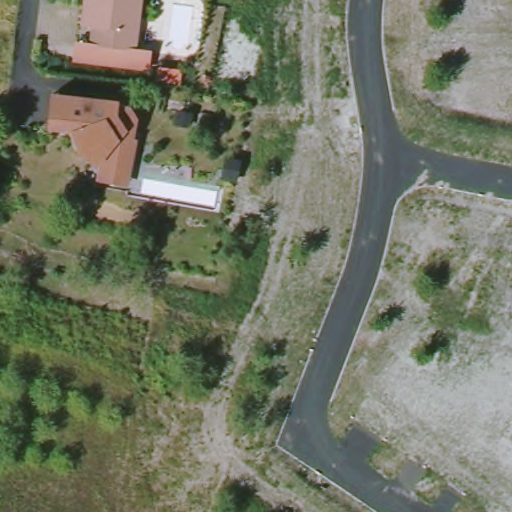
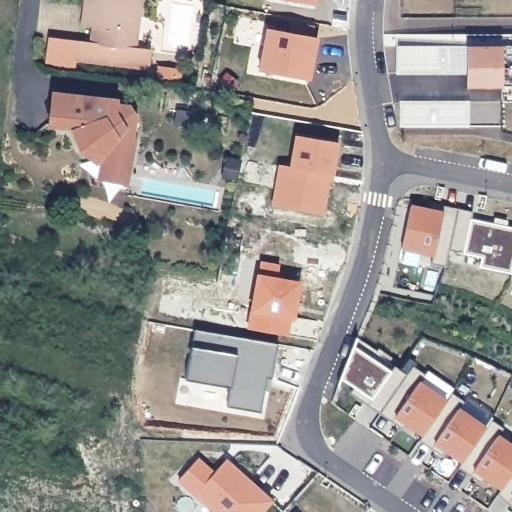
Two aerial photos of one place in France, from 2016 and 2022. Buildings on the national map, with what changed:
unchanged [(138,51),(95,45),(97,27),(87,26),(90,3),(90,0),(146,0),(139,50),(138,51)]
new [(315,6),(281,0),(316,0),(315,6)]
new [(258,71),(265,30),(318,39),(311,80),(258,71)]
new [(502,80),(502,86),(467,86),(465,42),(512,43),(512,80),(502,80)]
unchanged [(138,51),(153,54),(151,71),(135,69),(78,60),(77,60),(80,43),(81,44),(95,45),(138,51)]
unchanged [(105,175),(94,172),(96,161),(98,150),(77,140),(77,127),(57,127),(47,127),(47,96),(62,96),(112,97),(112,99),(119,100),(125,100),(132,112),(130,134),(128,133),(127,155),(122,178),(105,175)]
new [(280,165),(291,166),(296,135),(337,142),(332,175),(329,174),(322,215),(273,206),(280,165)]
new [(480,267),(482,258),(463,254),(450,250),(446,266),(432,263),(434,255),(403,250),(411,205),(443,212),(444,205),(473,211),(471,219),(512,227),(512,272),(480,267)]
new [(290,317),(286,335),(248,328),(260,261),(279,265),(277,278),(299,282),(295,305),(293,318),(290,317)]
new [(510,280),(512,272),(512,280),(510,280)]
new [(194,329),(277,343),(271,379),(267,378),(260,413),(227,407),(231,388),(185,380),(194,329)]
new [(355,338),(394,365),(397,360),(410,368),(383,407),(353,387),(340,378),(355,338)]
new [(410,368),(412,365),(425,373),(419,382),(445,400),(422,434),(383,407),(410,368)]
new [(445,400),(451,392),(463,400),(458,409),(485,427),(462,461),(445,450),(422,434),(445,400)]
new [(485,427),(490,419),(503,427),(497,435),(512,446),(512,472),(501,488),(485,477),(462,461),(485,427)]
new [(213,473),(225,460),(271,501),(261,512),(214,512),(178,480),(197,459),(213,473)]
new [(501,488),(512,472),(512,497),(501,488)]

